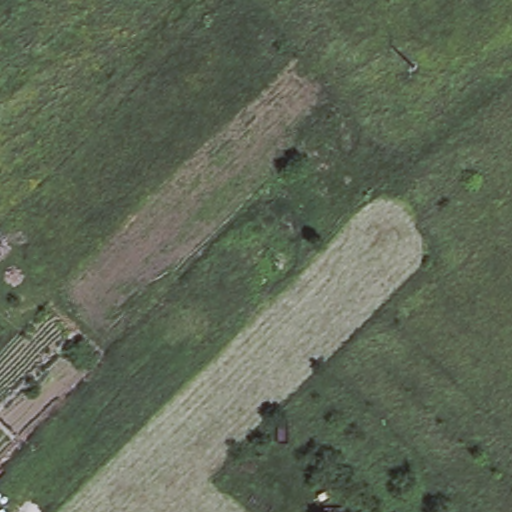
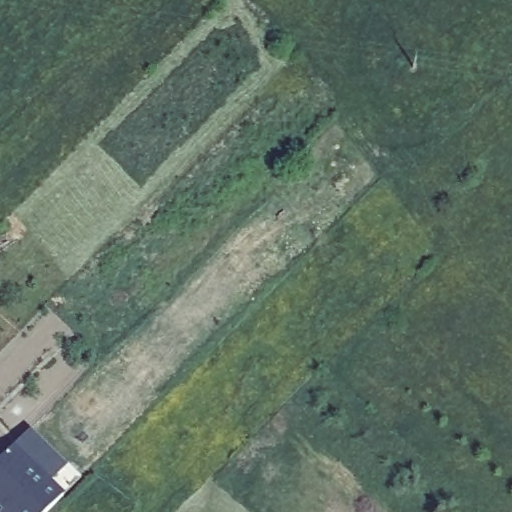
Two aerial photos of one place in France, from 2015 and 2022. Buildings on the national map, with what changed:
new [(68,462),(52,480),(65,492),(45,512),(0,512),(4,508),(0,504),(0,459),(32,426),(68,462)]

